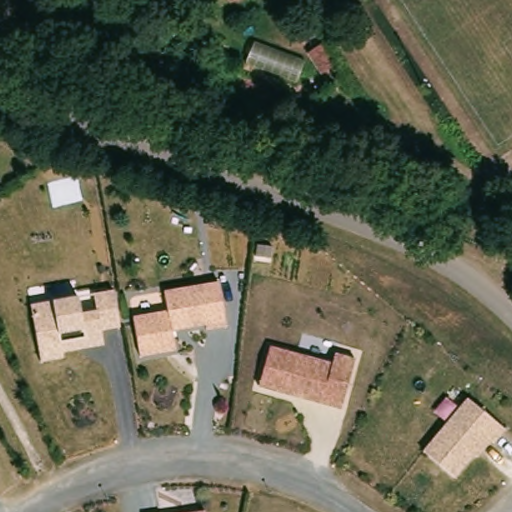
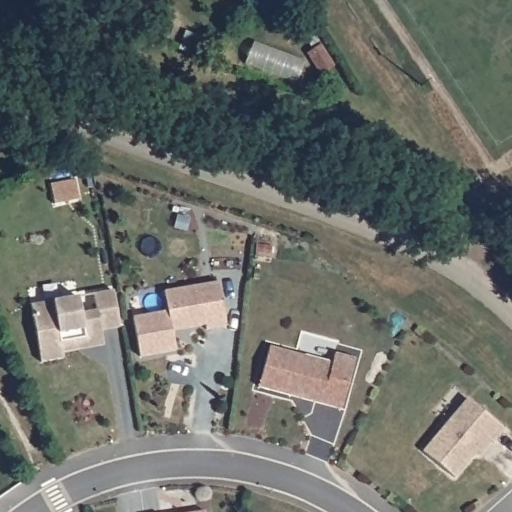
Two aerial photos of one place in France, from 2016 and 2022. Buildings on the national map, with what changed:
unchanged [(174,346),(175,351),(139,357),(132,318),(166,312),(163,292),(217,283),(225,327),(205,330),(204,325),(186,329),(171,331),(174,346)]
unchanged [(76,350),(61,353),(63,358),(40,362),(30,306),(77,297),(80,313),(95,310),(93,295),(113,291),(115,308),(119,328),(100,331),(101,336),(103,346),(76,350)]
unchanged [(332,362),(334,353),(354,359),(341,409),(257,386),(269,345),(332,362)]
unchanged [(458,476),(456,478),(423,455),(462,399),(502,427),(492,441),(486,437),(458,476)]
unchanged [(197,512),(204,511),(204,512),(197,512)]

